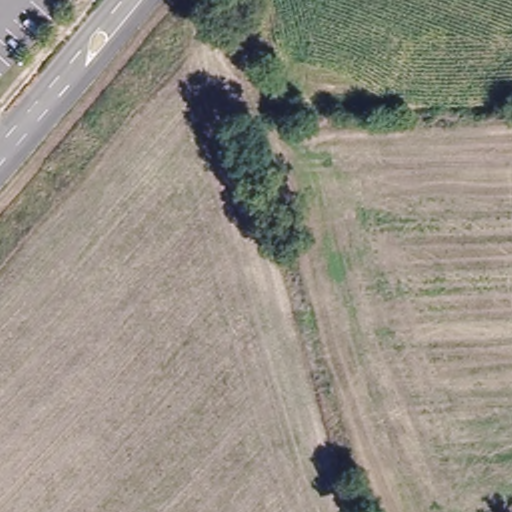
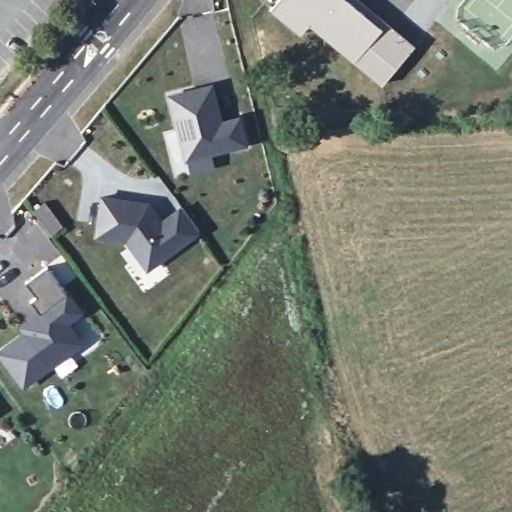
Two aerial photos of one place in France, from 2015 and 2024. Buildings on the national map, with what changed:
new [(266,0),(354,0),(377,19),(350,52),(305,15),(296,26),(266,1),(266,0)]
new [(405,41),(377,19),(354,0),(366,0),(410,36),(405,41)]
new [(377,75),(350,52),(377,19),(405,41),(377,75)]
new [(247,144),(187,160),(171,96),(212,85),(222,122),(240,118),(247,144)]
new [(150,270),(129,241),(99,237),(104,199),(150,205),(164,224),(184,209),(201,231),(150,270)]
new [(74,302),(59,313),(70,327),(40,350),(45,355),(17,376),(0,354),(0,337),(19,323),(15,317),(32,304),(24,291),(29,287),(19,272),(40,257),(74,302)]

